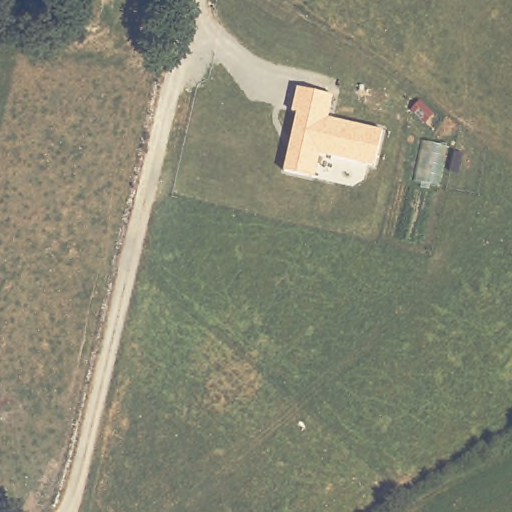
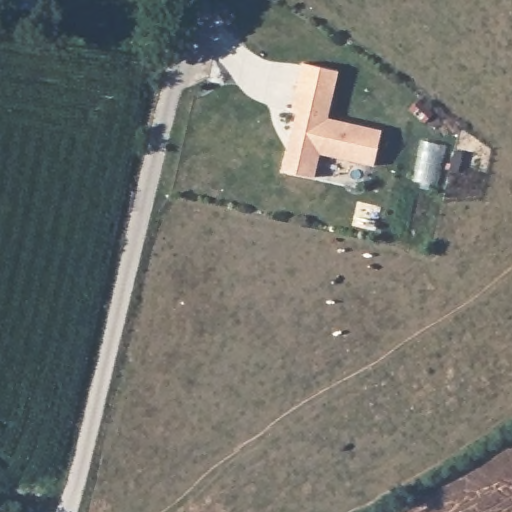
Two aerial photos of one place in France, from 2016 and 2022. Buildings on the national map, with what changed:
unchanged [(372,167),(319,156),(313,178),(281,173),(294,113),(290,112),(301,63),(339,70),(327,119),(380,128),(372,167)]

